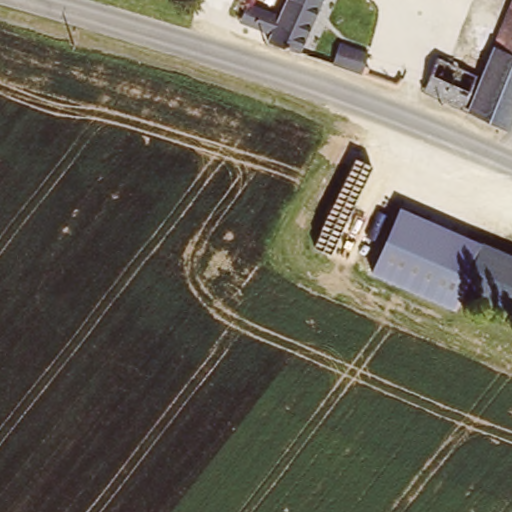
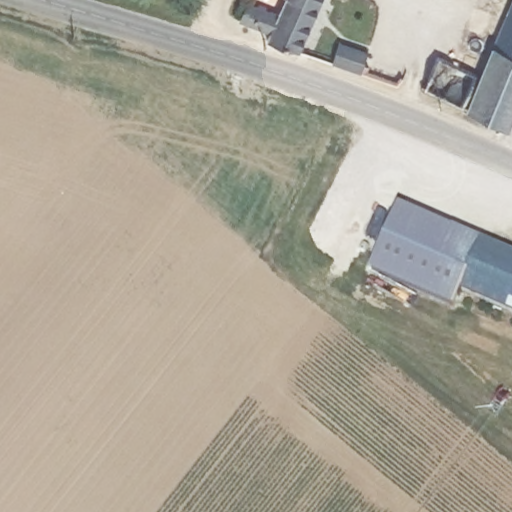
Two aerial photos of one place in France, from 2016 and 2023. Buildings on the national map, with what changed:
unchanged [(303,54),(271,44),(274,36),(253,29),(254,28),(249,25),(256,11),(281,21),(291,1),(289,1),(289,0),(327,0),(304,51),(303,54)]
unchanged [(469,110),(512,2),(512,119),(508,129),(469,110)]
unchanged [(365,54),(360,67),(334,58),(341,44),(365,54)]
unchanged [(436,56),(476,74),(462,107),(423,88),(436,56)]
unchanged [(464,288),(456,305),(369,266),(399,201),(485,240),(464,288)]
unchanged [(464,288),(485,240),(512,252),(512,310),(464,288)]

